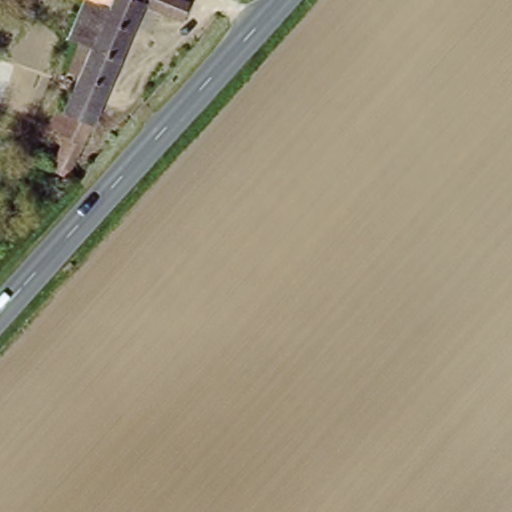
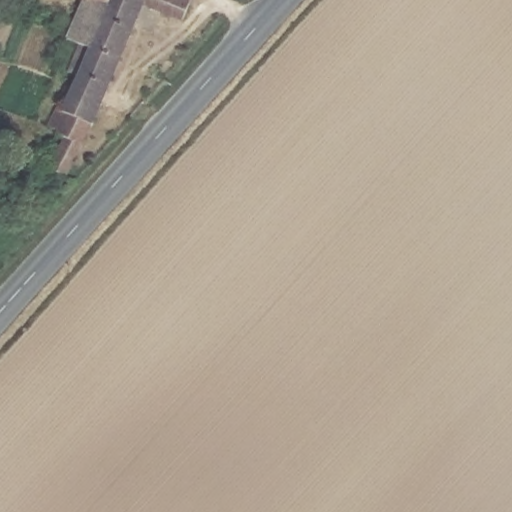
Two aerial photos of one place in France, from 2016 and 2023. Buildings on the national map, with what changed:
unchanged [(137,2),(100,99),(62,177),(47,171),(60,139),(42,131),(52,108),(57,110),(70,77),(60,72),(72,43),(68,42),(86,0),(183,0),(175,18),(137,2)]

